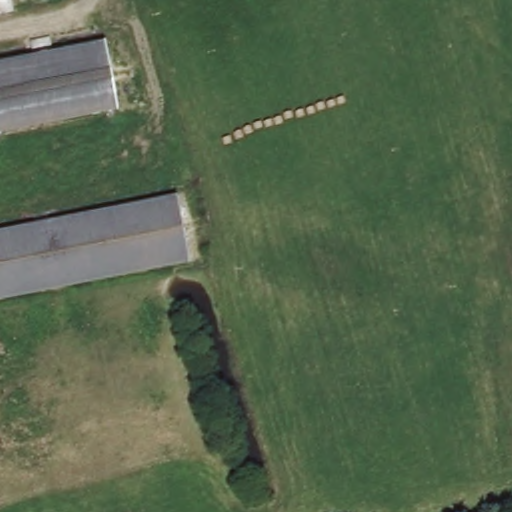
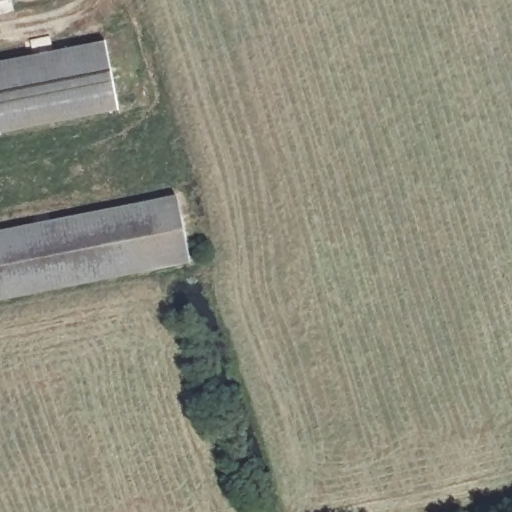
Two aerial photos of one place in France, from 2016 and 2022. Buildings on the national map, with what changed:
unchanged [(119,111),(0,132),(0,66),(105,45),(119,111)]
unchanged [(179,205),(190,261),(0,301),(0,237),(69,223),(179,205)]

